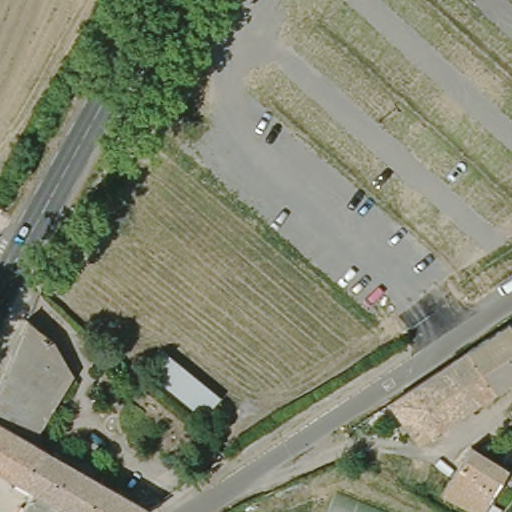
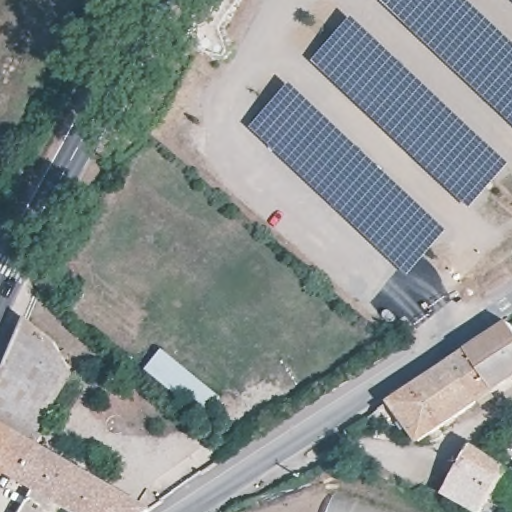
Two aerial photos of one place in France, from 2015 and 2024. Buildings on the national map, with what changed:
new [(512,122),(381,0),(468,0),(512,41),(512,122)]
new [(512,167),(471,209),(312,60),(353,17),(512,165),(512,167)]
new [(451,232),(409,276),(250,126),(291,83),(451,232)]
unchanged [(150,500),(133,512),(96,512),(65,494),(55,512),(18,512),(24,500),(27,500),(37,480),(0,459),(0,378),(31,309),(47,322),(62,335),(60,341),(75,369),(42,425),(45,427),(39,438),(150,500)]
unchanged [(471,350),(512,323),(512,379),(498,388),(471,350)]
unchanged [(498,388),(494,391),(486,396),(483,399),(479,401),(476,403),(473,405),(463,412),(452,394),(469,382),(456,361),(471,350),(498,388)]
unchanged [(223,398),(205,418),(152,372),(169,353),(223,398)]
unchanged [(404,425),(395,423),(390,415),(386,408),(397,401),(456,361),(469,382),(452,394),(463,412),(443,426),(423,440),(414,426),(408,430),(404,425)]
unchanged [(485,512),(478,512),(444,492),(471,445),(491,457),(510,469),(485,512)]
unchanged [(383,512),(329,512),(336,494),(383,512)]

